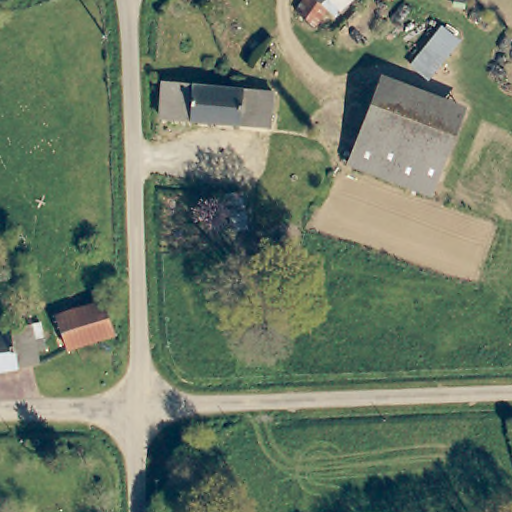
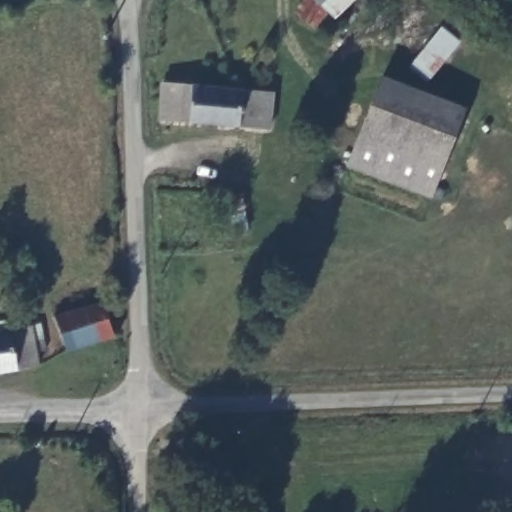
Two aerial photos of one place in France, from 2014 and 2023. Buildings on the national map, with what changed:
unchanged [(316,5),(301,23),(282,7),(288,0),(335,0),(322,10),(316,5)]
unchanged [(381,76),(465,109),(449,151),(365,119),(381,76)]
unchanged [(257,90),(255,127),(149,119),(151,82),(257,90)]
unchanged [(449,151),(433,192),(350,161),(365,119),(449,151)]
unchanged [(112,337),(65,351),(55,315),(102,301),(112,337)]
unchanged [(33,323),(42,363),(0,372),(0,332),(33,323)]

